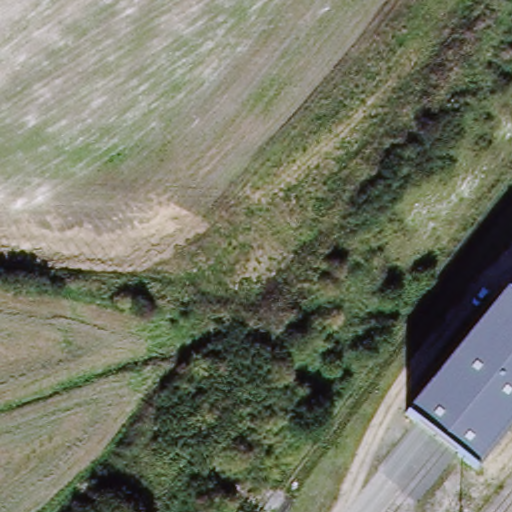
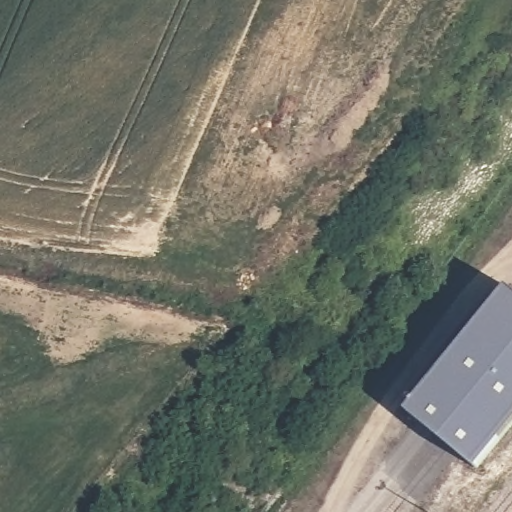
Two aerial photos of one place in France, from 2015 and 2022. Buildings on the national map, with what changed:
unchanged [(512,297),(512,420),(483,454),(413,397),(435,372),(502,289),(512,297)]

